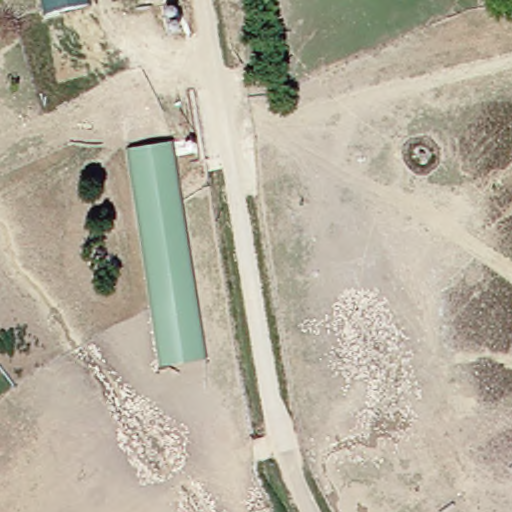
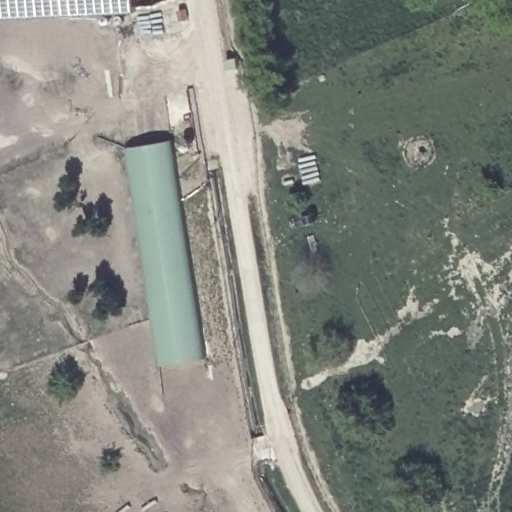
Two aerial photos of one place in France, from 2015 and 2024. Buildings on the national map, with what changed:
new [(0,18),(0,0),(135,0),(136,13),(0,18)]
demolished [(42,0),(92,0),(93,8),(45,16),(42,0)]
unchanged [(128,148),(175,141),(214,356),(158,364),(128,148)]

